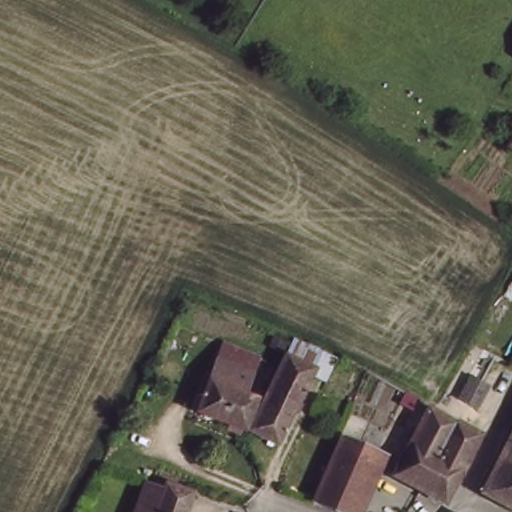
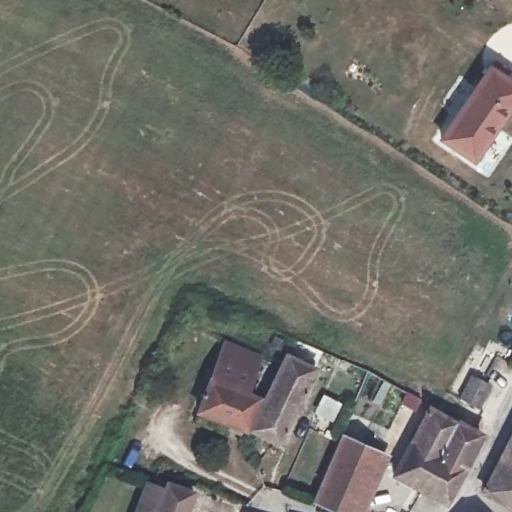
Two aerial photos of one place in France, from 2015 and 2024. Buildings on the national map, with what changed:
new [(489,63),(512,80),(512,104),(505,114),(470,162),(437,139),(489,63)]
unchanged [(261,399),(210,375),(224,343),(275,365),(261,399)]
unchanged [(261,399),(275,365),(282,346),(317,364),(283,440),(250,424),(261,399)]
unchanged [(490,380),(480,398),(465,390),(475,371),(490,380)]
unchanged [(250,424),(245,436),(244,439),(193,416),(210,375),(261,399),(250,424)]
unchanged [(419,487),(392,471),(423,402),(453,418),(419,487)]
unchanged [(453,418),(477,431),(442,501),(419,487),(453,418)]
unchanged [(483,487),(512,433),(512,503),(483,487)]
unchanged [(318,502),(347,435),(382,453),(356,512),(346,512),(318,502)]
unchanged [(162,484),(165,475),(194,486),(186,512),(132,512),(142,478),(162,484)]
unchanged [(473,512),(457,512),(460,505),(473,512)]
unchanged [(259,512),(248,512),(250,508),(259,512)]

